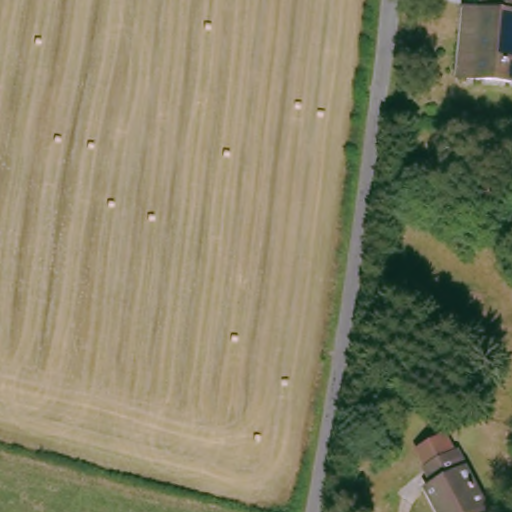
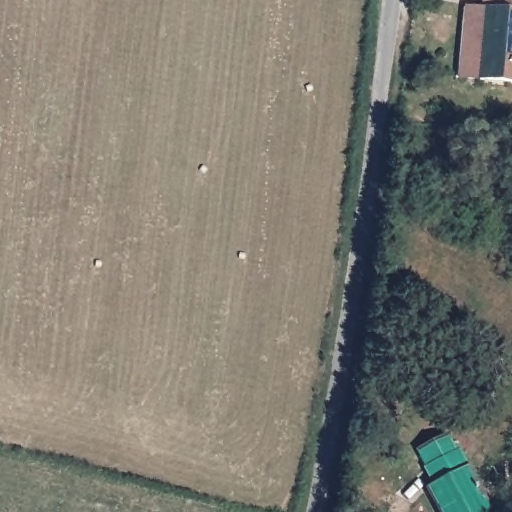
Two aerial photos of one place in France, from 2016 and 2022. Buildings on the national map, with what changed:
unchanged [(481,10),(482,0),(512,0),(512,80),(473,75),(450,75),(459,8),(481,10)]
unchanged [(432,510),(422,484),(428,482),(422,466),(415,446),(448,433),(456,454),(477,512),(433,512),(432,510)]

